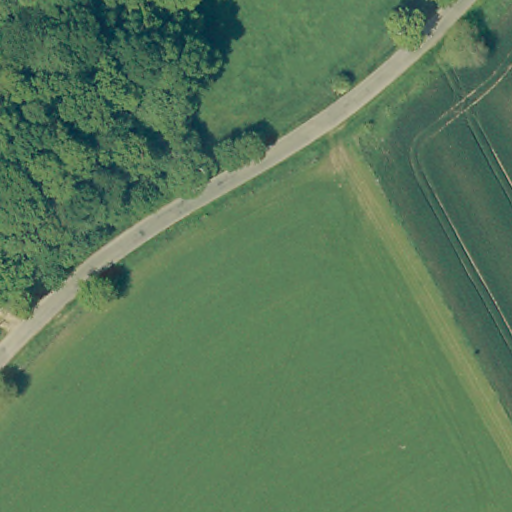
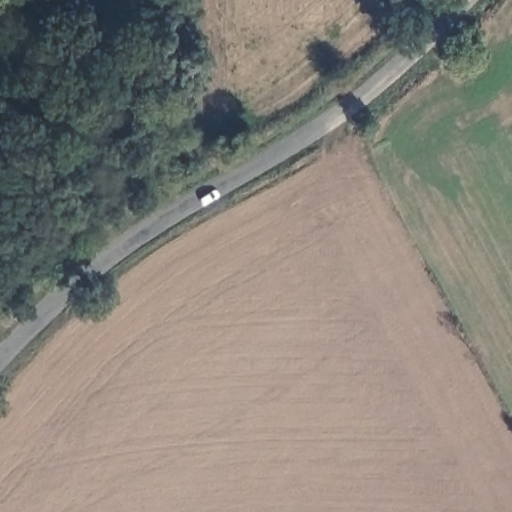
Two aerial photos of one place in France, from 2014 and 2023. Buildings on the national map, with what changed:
[]

